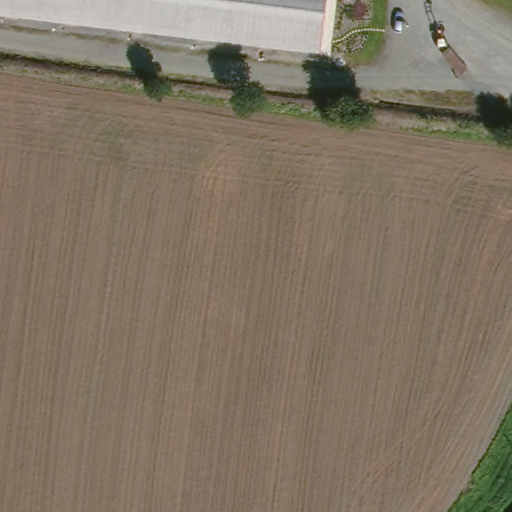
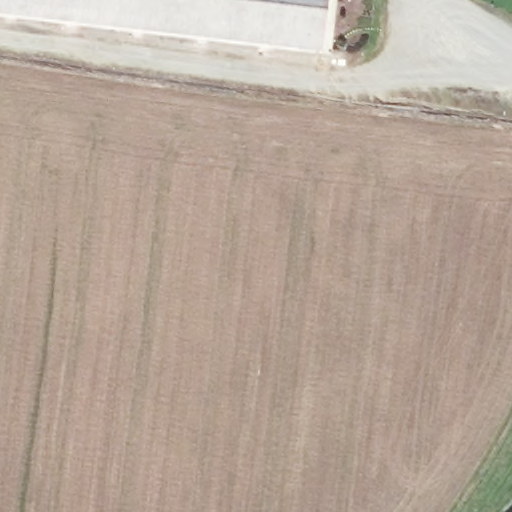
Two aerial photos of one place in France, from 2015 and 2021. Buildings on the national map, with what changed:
unchanged [(0,16),(0,0),(327,0),(321,54),(0,16)]

